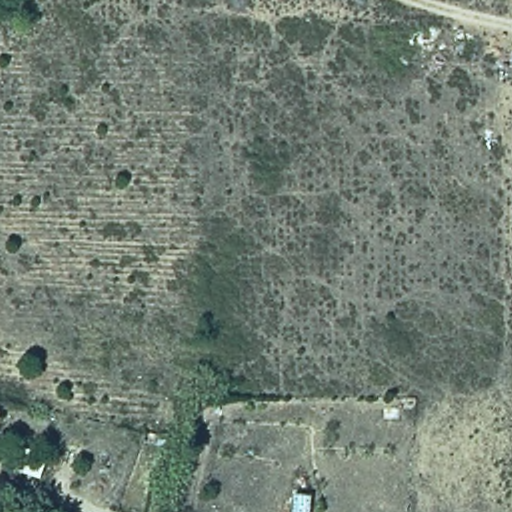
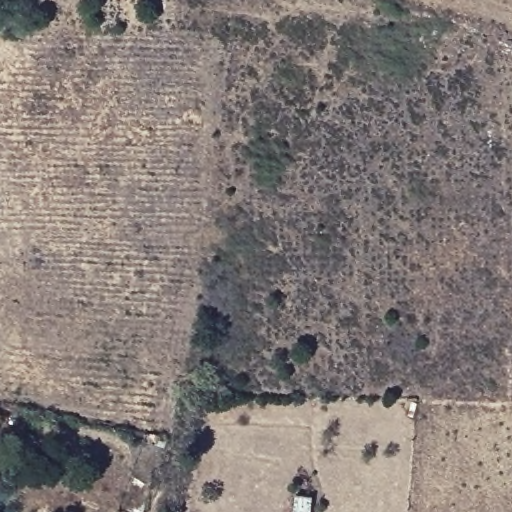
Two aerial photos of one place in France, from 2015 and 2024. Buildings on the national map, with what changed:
unchanged [(308,468),(305,495),(313,496),(310,512),(290,512),(296,466),(308,468)]

